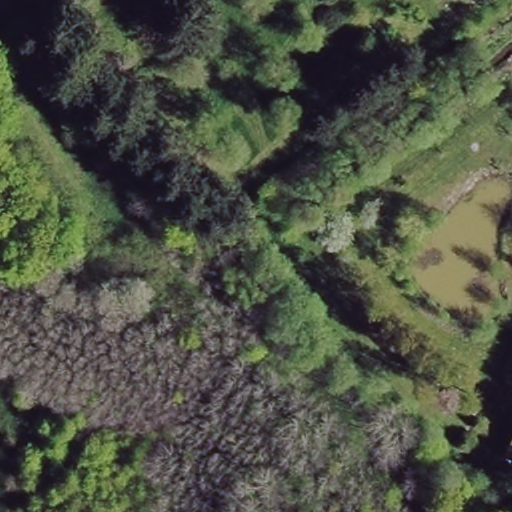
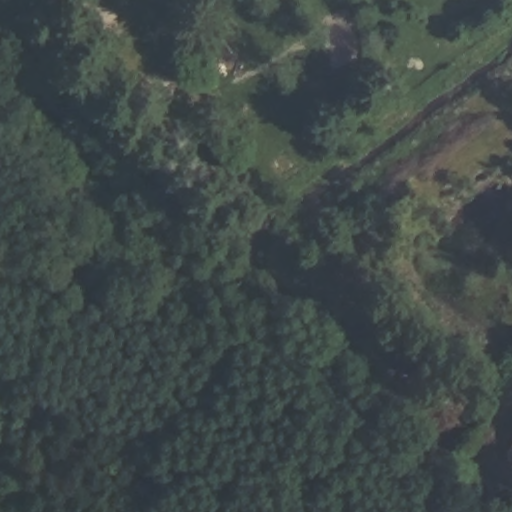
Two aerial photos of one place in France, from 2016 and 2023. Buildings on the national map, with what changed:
unchanged [(512,443),(512,461),(504,457),(512,443)]

